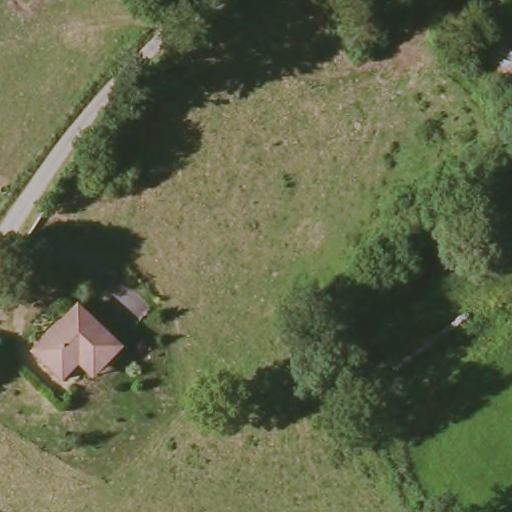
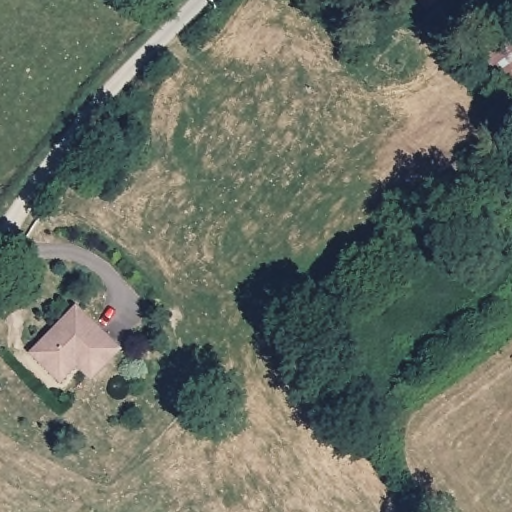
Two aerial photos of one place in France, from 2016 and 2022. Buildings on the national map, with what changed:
unchanged [(420,0),(437,0),(427,9),(420,0)]
unchanged [(507,35),(512,42),(512,103),(480,52),(507,35)]
unchanged [(119,355),(91,383),(77,370),(61,387),(32,358),(77,313),(119,355)]

